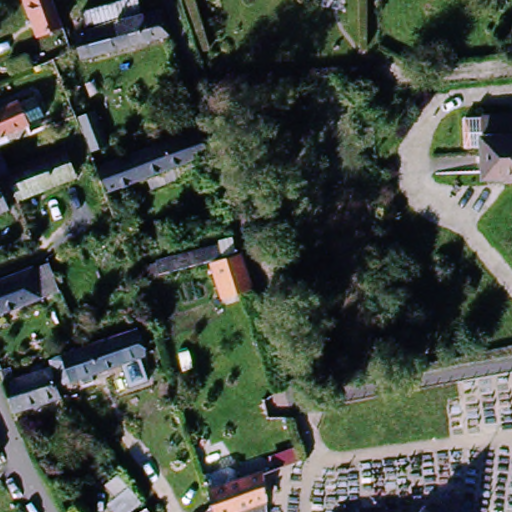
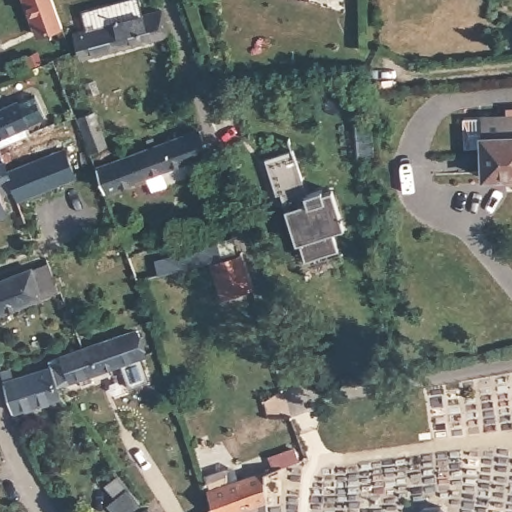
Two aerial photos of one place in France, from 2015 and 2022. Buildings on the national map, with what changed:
unchanged [(21,0),(49,0),(62,38),(38,46),(33,32),(26,35),(22,24),(29,22),(21,0)]
unchanged [(143,13),(163,7),(169,31),(85,53),(79,29),(86,27),(81,7),(110,0),(139,0),(143,13)]
unchanged [(0,139),(0,112),(18,105),(28,128),(0,139)]
unchanged [(481,136),(486,136),(484,116),(509,116),(512,116),(512,177),(483,177),(481,136)]
unchanged [(199,128),(206,150),(103,189),(94,166),(199,128)]
new [(307,194),(323,189),(324,195),(334,191),(346,229),(334,232),(339,250),(306,261),(301,244),(296,245),(286,209),(281,195),(278,196),(265,158),(293,149),(307,194)]
unchanged [(45,157),(47,156),(59,151),(69,176),(24,193),(22,194),(12,198),(9,189),(3,173),(45,157)]
unchanged [(3,173),(9,189),(0,193),(0,166),(3,173)]
unchanged [(3,207),(0,208),(0,201),(3,207)]
unchanged [(144,265),(146,269),(156,266),(155,262),(218,247),(216,243),(231,239),(235,255),(149,277),(148,274),(140,277),(137,268),(144,265)]
unchanged [(235,255),(241,254),(251,288),(221,298),(211,262),(235,255)]
unchanged [(61,288),(43,295),(43,292),(0,309),(0,277),(49,259),(61,288)]
unchanged [(83,388),(79,377),(57,384),(52,367),(50,359),(58,356),(133,334),(141,358),(123,363),(89,374),(93,386),(83,388)]
unchanged [(12,414),(0,373),(10,370),(13,379),(52,367),(57,384),(61,397),(12,414)]
unchanged [(202,491),(204,490),(199,475),(223,467),(230,471),(233,481),(261,473),(262,502),(262,512),(206,512),(208,511),(202,491)]
unchanged [(114,512),(109,505),(117,499),(107,486),(113,481),(110,476),(116,472),(120,477),(130,489),(141,504),(130,512),(114,512)]
unchanged [(427,501),(442,501),(451,510),(450,512),(419,512),(419,510),(427,501)]

